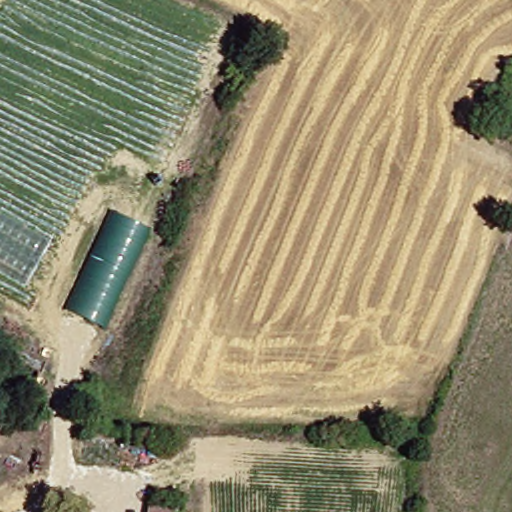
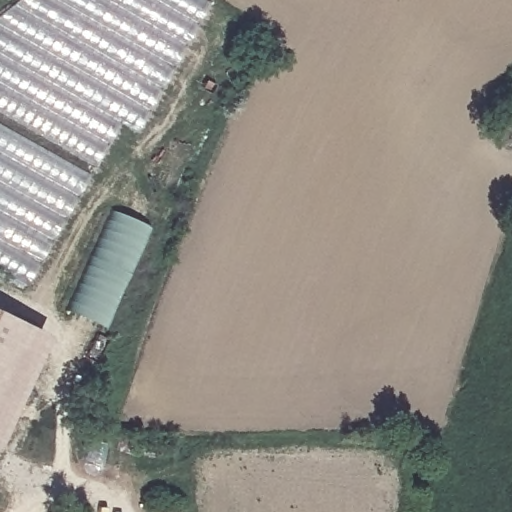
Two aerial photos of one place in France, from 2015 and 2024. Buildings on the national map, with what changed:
new [(135,136),(117,126),(94,168),(0,116),(0,16),(19,0),(200,0),(209,5),(135,136)]
new [(0,272),(0,125),(90,176),(27,287),(0,272)]
new [(153,230),(107,333),(65,313),(111,212),(153,230)]
new [(47,342),(0,447),(0,321),(47,342)]

